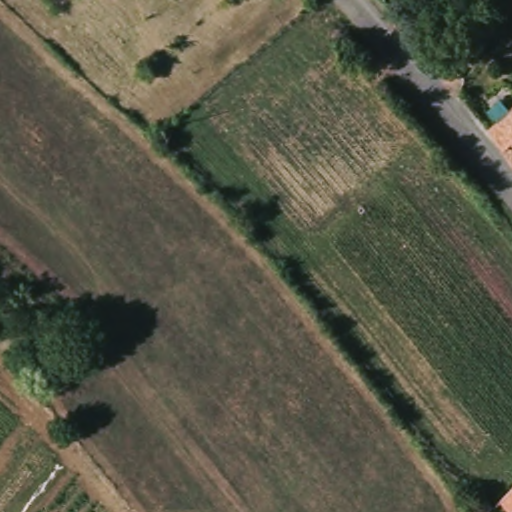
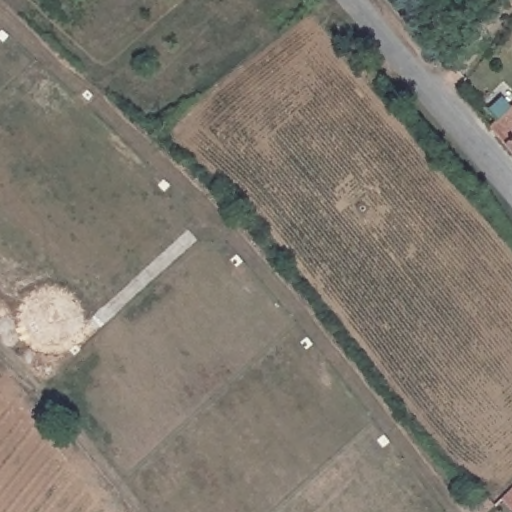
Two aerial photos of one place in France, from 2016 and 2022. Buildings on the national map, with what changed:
unchanged [(512,109),(512,155),(490,130),(512,109)]
unchanged [(477,490),(495,509),(494,509),(492,512),(469,512),(462,504),(477,490)]

